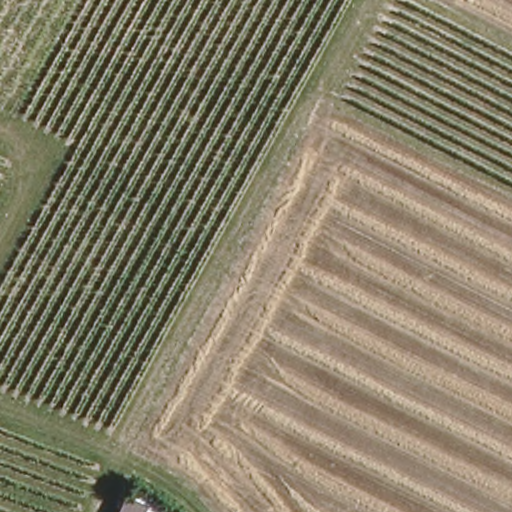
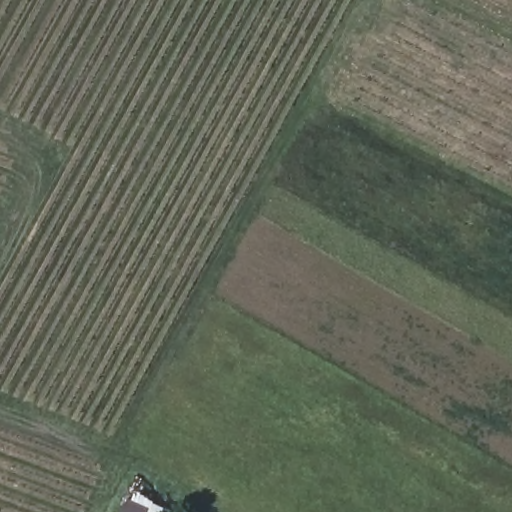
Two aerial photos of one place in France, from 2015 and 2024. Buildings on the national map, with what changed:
unchanged [(141,493),(133,512),(112,504),(120,484),(141,493)]

